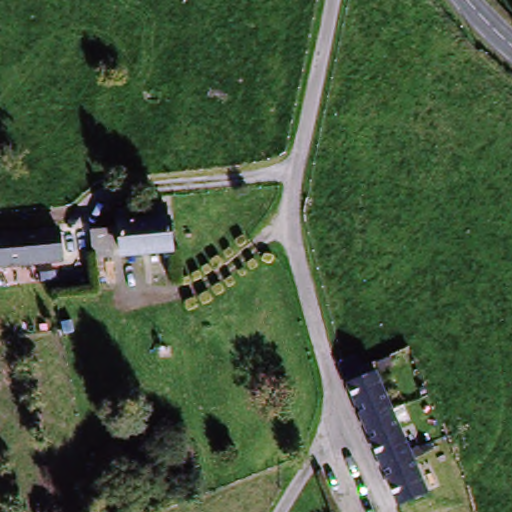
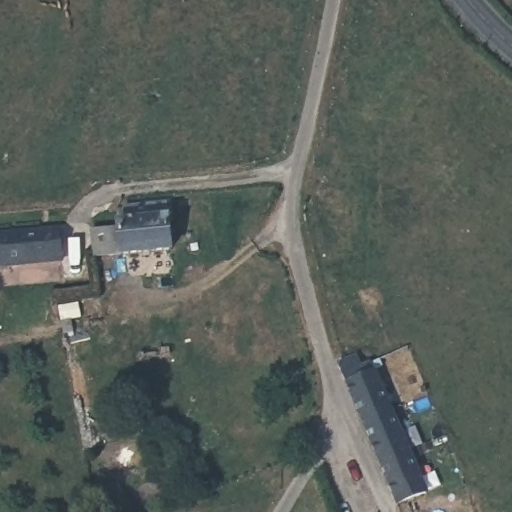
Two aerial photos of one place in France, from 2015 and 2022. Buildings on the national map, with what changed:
unchanged [(168,257),(111,264),(111,255),(93,255),(92,235),(110,232),(110,220),(155,217),(156,230),(165,229),(168,257)]
unchanged [(0,227),(7,227),(7,233),(56,229),(60,262),(0,267),(0,234),(0,227)]
unchanged [(403,503),(347,381),(339,362),(343,361),(362,352),(367,362),(375,358),(380,370),(434,488),(403,503)]

